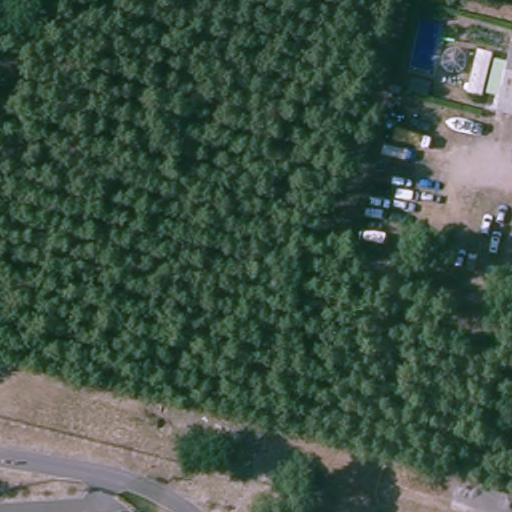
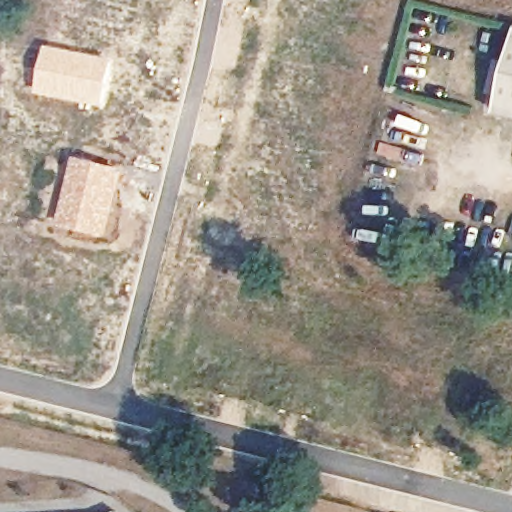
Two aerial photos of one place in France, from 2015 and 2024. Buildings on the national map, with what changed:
new [(36,94),(48,47),(116,60),(105,108),(36,94)]
unchanged [(512,59),(512,113),(498,110),(512,59)]
new [(124,170),(105,240),(58,228),(75,158),(124,170)]

